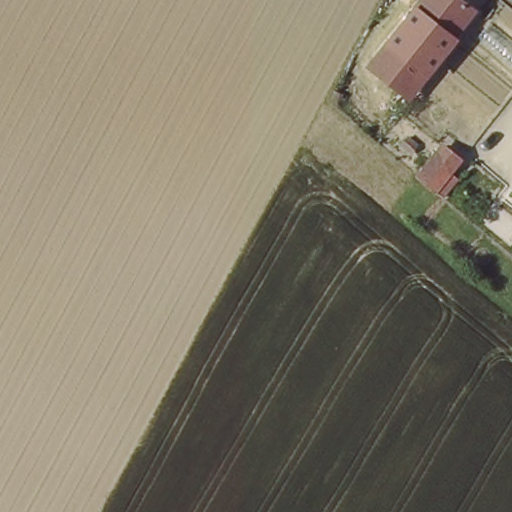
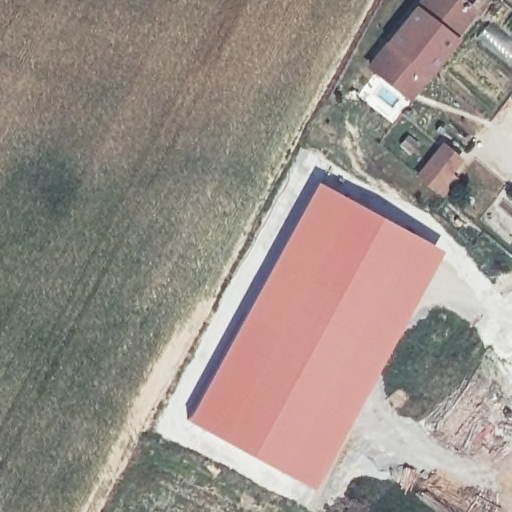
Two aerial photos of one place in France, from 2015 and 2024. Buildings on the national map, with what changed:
unchanged [(415,78),(380,51),(390,39),(420,0),(467,0),(473,4),(443,42),(448,47),(431,69),(421,82),(415,78)]
unchanged [(465,157),(456,169),(463,176),(445,195),(415,174),(446,141),(465,157)]
new [(205,383),(316,179),(439,246),(401,321),(392,343),(337,434),(345,437),(326,477),(320,475),(313,490),(289,479),(186,420),(205,383)]

